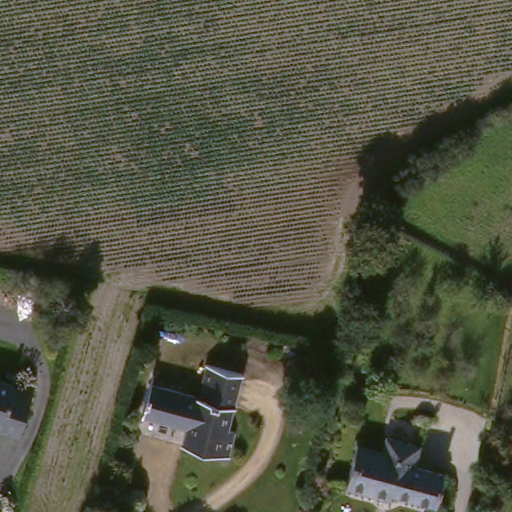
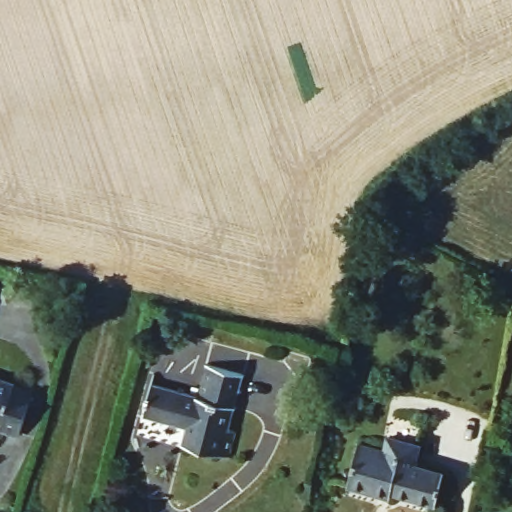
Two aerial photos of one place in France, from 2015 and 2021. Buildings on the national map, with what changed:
unchanged [(240,371),(228,424),(235,425),(225,454),(178,441),(182,428),(143,415),(151,383),(200,394),(208,364),(240,371)]
unchanged [(23,429),(0,422),(0,372),(36,384),(23,429)]
unchanged [(384,489),(383,494),(348,487),(359,444),(381,449),(384,437),(410,441),(406,458),(418,459),(436,464),(428,497),(404,493),(384,489)]

